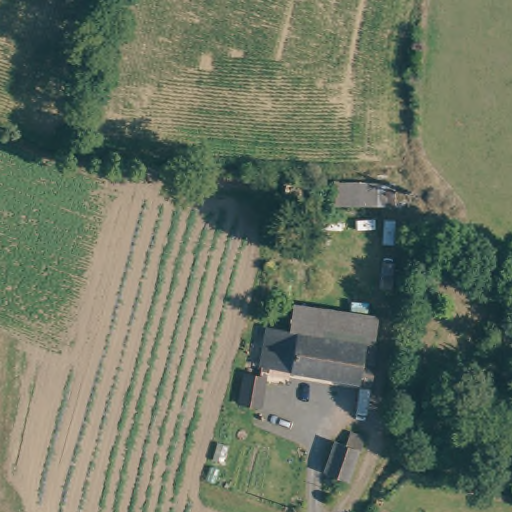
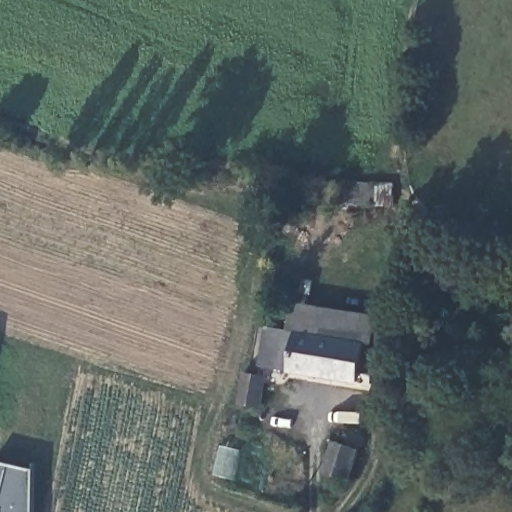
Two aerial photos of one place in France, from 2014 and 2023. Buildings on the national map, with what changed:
unchanged [(391,180),(395,210),(331,208),(336,181),(391,180)]
unchanged [(266,361),(273,327),(294,332),(298,307),(380,325),(375,348),(377,349),(370,384),(266,361)]
unchanged [(267,379),(262,405),(242,402),(247,375),(267,379)]
unchanged [(350,473),(342,483),(336,479),(335,463),(345,440),(354,443),(359,429),(372,434),(356,475),(350,473)]
new [(34,471),(33,512),(0,512),(0,463),(34,471)]

